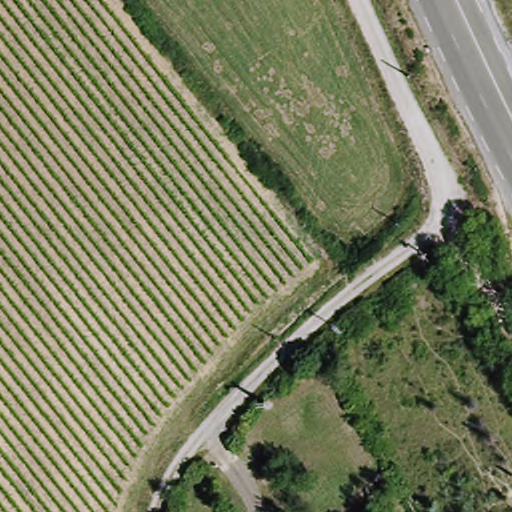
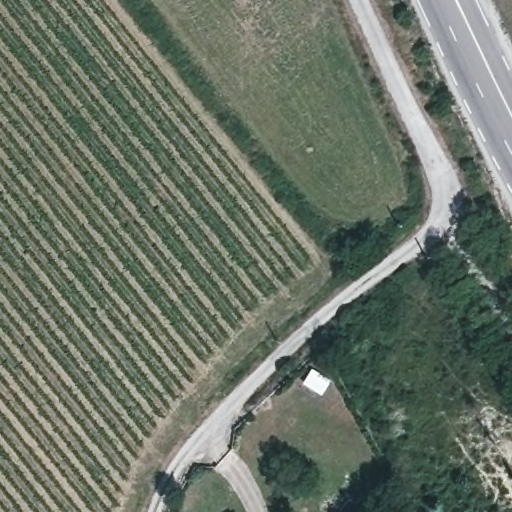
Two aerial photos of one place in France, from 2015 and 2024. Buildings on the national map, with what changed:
[]

